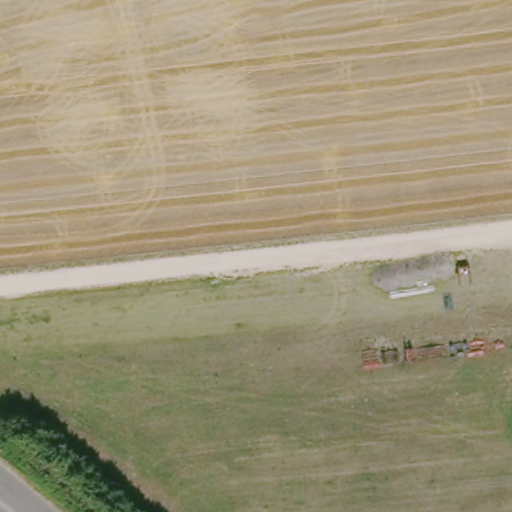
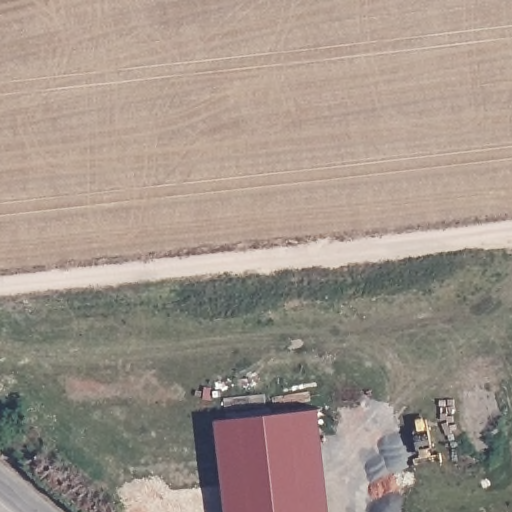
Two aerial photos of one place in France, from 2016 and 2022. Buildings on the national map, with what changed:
new [(328,512),(242,512),(232,420),(317,411),(328,512)]

